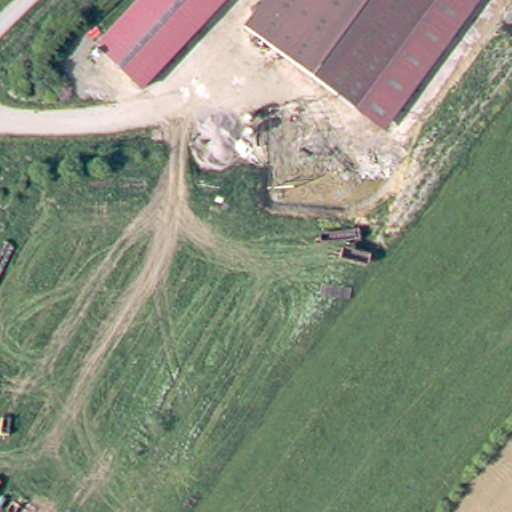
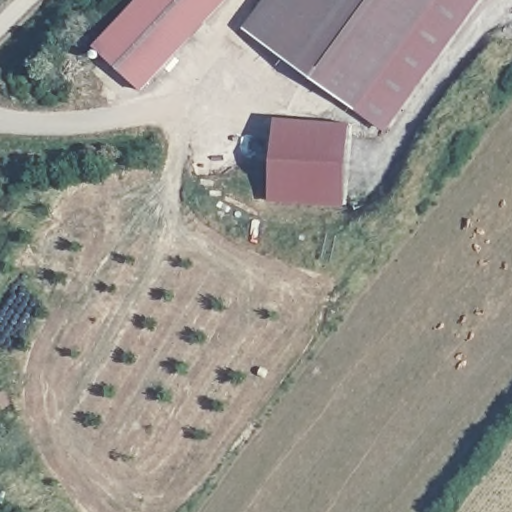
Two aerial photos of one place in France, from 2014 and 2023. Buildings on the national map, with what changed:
unchanged [(226,0),(143,90),(94,44),(136,0),(226,0)]
unchanged [(483,0),(390,129),(253,27),(272,0),(483,0)]
new [(350,124),(345,208),(270,203),(275,119),(350,124)]

